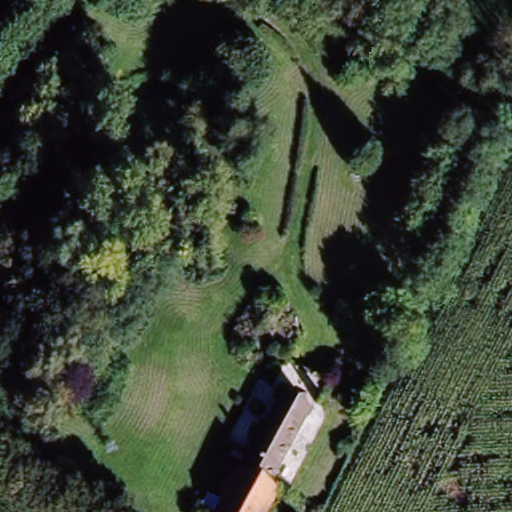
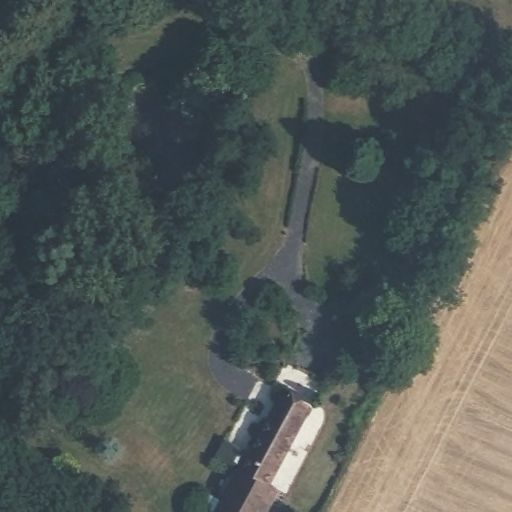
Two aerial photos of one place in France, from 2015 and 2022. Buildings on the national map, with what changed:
unchanged [(326,401),(283,378),(296,355),(337,378),(339,378),(326,401)]
unchanged [(279,388),(306,405),(294,421),(266,475),(275,482),(256,512),(210,512),(279,388)]

